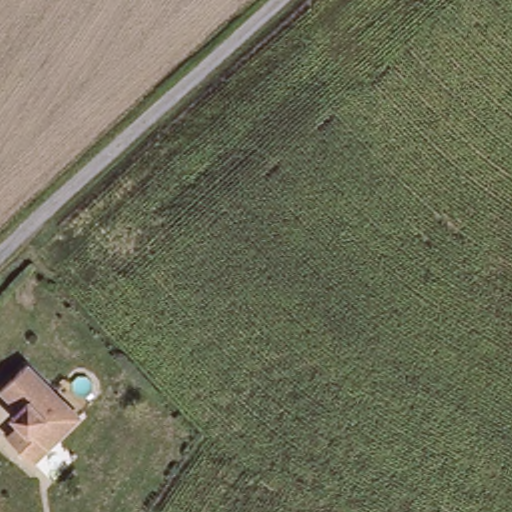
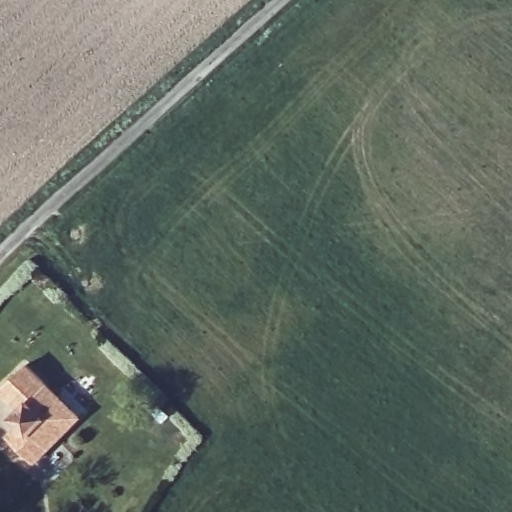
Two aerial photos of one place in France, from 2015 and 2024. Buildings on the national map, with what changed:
unchanged [(31,365),(82,416),(37,460),(12,437),(31,416),(3,391),(31,365)]

